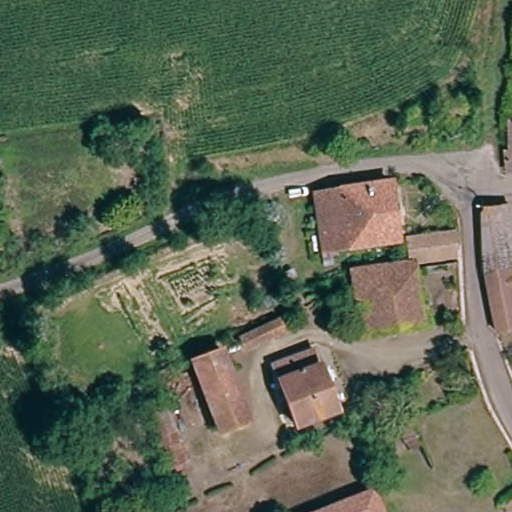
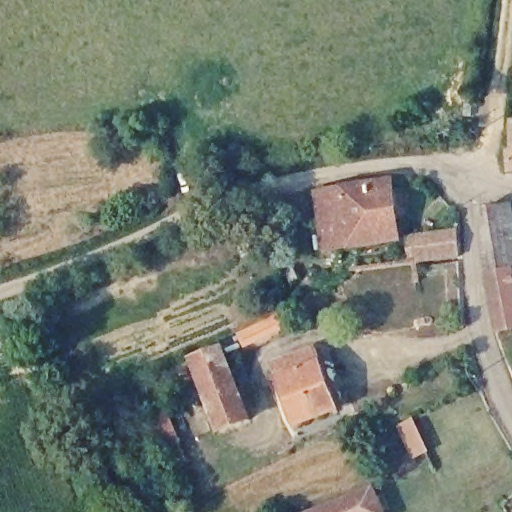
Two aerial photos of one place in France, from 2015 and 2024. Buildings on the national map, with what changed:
unchanged [(392,184),(401,241),(332,249),(323,197),(392,184)]
unchanged [(503,332),(489,265),(491,216),(512,212),(512,330),(503,332)]
unchanged [(452,232),(455,245),(455,254),(413,259),(411,238),(426,236),(452,232)]
unchanged [(363,336),(353,268),(413,259),(424,326),(363,336)]
unchanged [(287,335),(254,349),(249,338),(281,324),(287,335)]
unchanged [(338,407),(297,420),(277,364),(314,350),(338,407)]
unchanged [(252,421),(225,430),(198,361),(225,352),(252,421)]
unchanged [(172,416),(191,461),(177,465),(159,420),(172,416)]
unchanged [(382,512),(338,512),(376,496),(382,512)]

